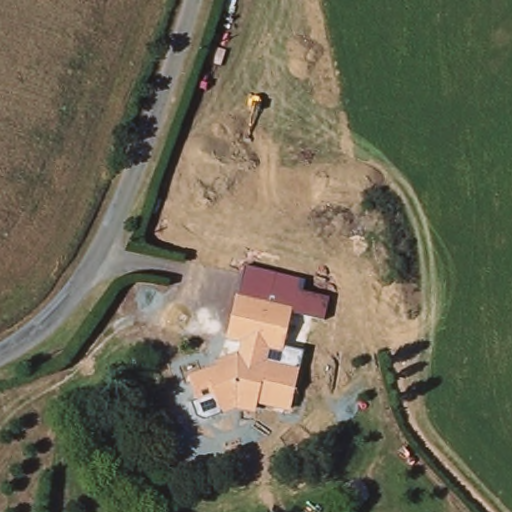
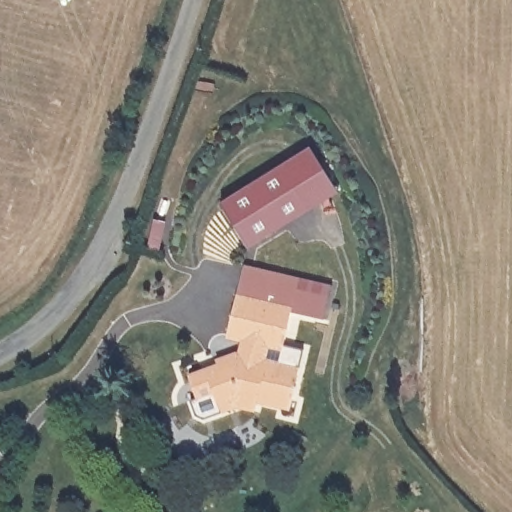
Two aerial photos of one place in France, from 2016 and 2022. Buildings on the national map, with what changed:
new [(221,203),(311,146),(339,192),(250,247),(221,203)]
new [(297,307),(294,306),(248,293),(243,291),(238,290),(244,265),(334,285),(326,319),(296,312),(297,307)]
unchanged [(259,404),(256,412),(238,408),(203,419),(195,414),(191,399),(196,397),(192,385),(189,373),(218,364),(224,355),(244,345),(247,333),(231,329),(243,291),(248,293),(294,306),(297,307),(286,347),(272,343),(269,354),(301,363),(288,403),(286,411),(259,404)]

